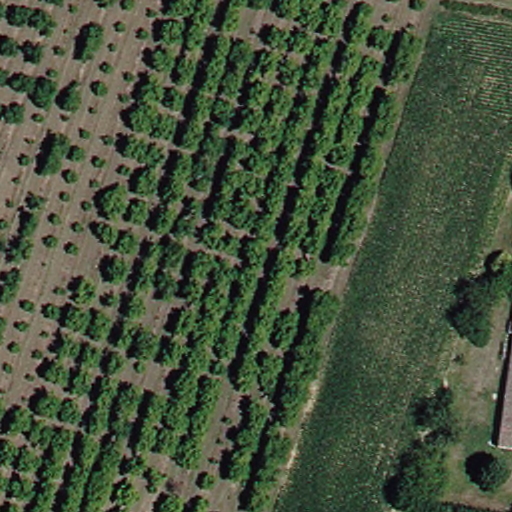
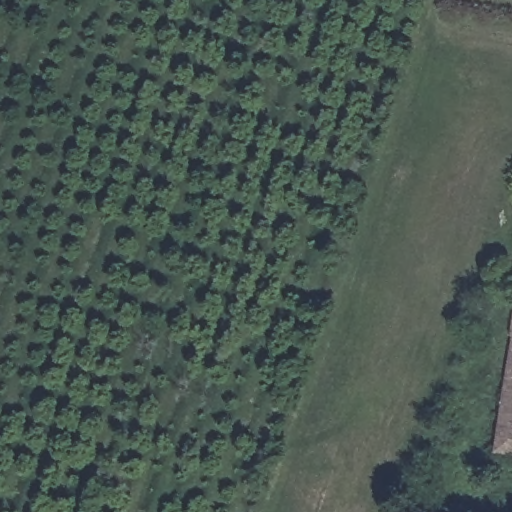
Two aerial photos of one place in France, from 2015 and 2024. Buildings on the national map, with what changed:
unchanged [(491,427),(500,427),(512,377),(512,445),(487,440),(491,427)]

